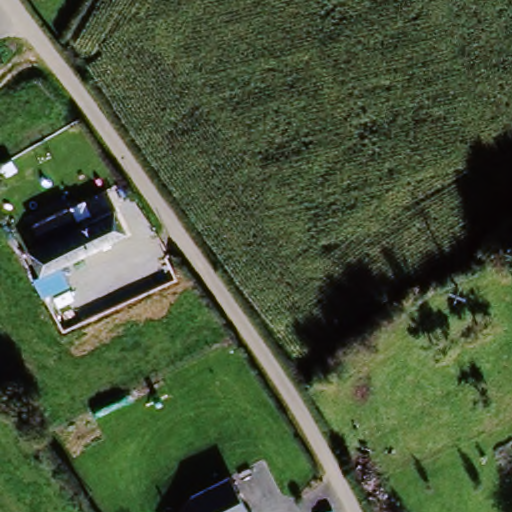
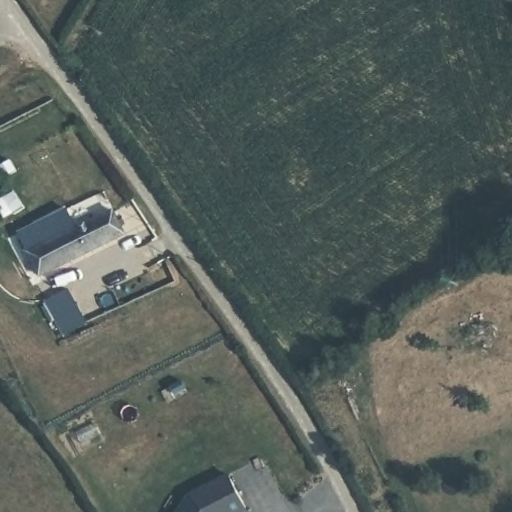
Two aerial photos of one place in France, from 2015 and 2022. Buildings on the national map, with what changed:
unchanged [(30,228),(36,241),(43,237),(33,218),(66,202),(75,221),(112,203),(126,230),(38,278),(17,234),(30,228)]
unchanged [(247,512),(176,512),(187,497),(230,475),(247,512)]

